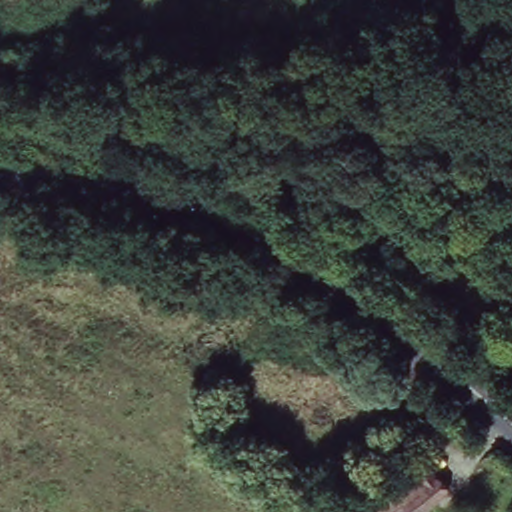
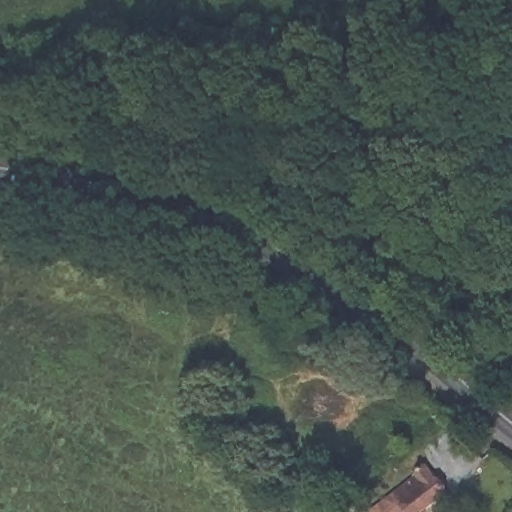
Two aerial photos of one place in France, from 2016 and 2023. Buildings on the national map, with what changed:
unchanged [(392,415),(425,394),(450,423),(413,440),(392,415)]
unchanged [(415,477),(410,469),(422,460),(449,497),(427,512),(367,512),(365,511),(415,477)]

